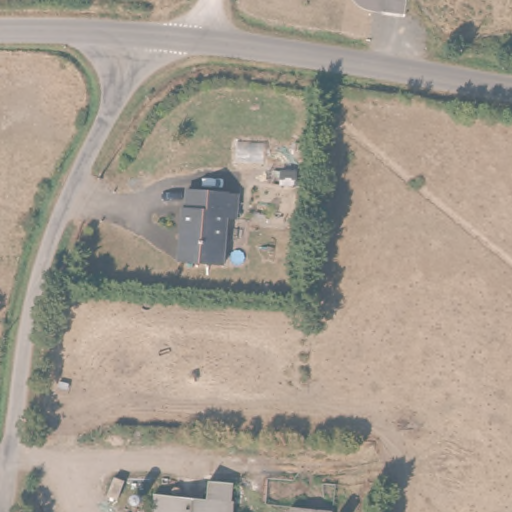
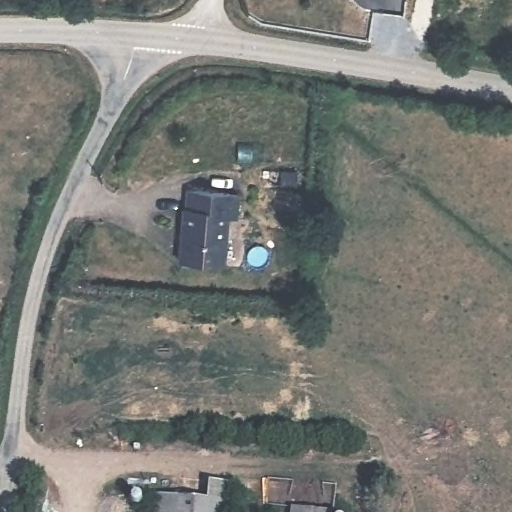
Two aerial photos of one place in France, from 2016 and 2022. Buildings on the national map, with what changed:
unchanged [(237,197),(236,220),(227,219),(222,267),(178,263),(182,212),(186,212),(187,191),(237,197)]
unchanged [(207,496),(210,475),(235,477),(232,512),(153,512),(155,491),(207,496)]
unchanged [(327,507),(327,512),(286,512),(287,503),(327,507)]

